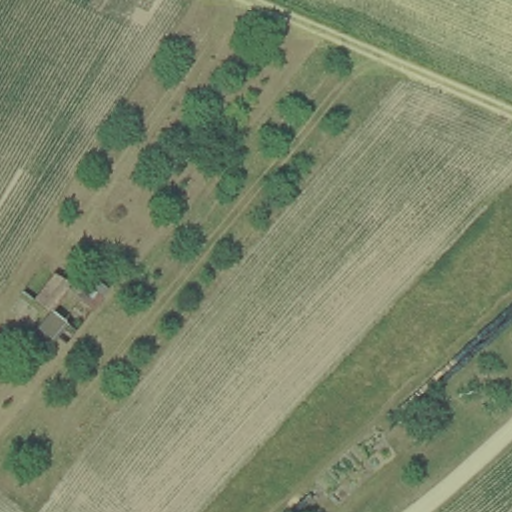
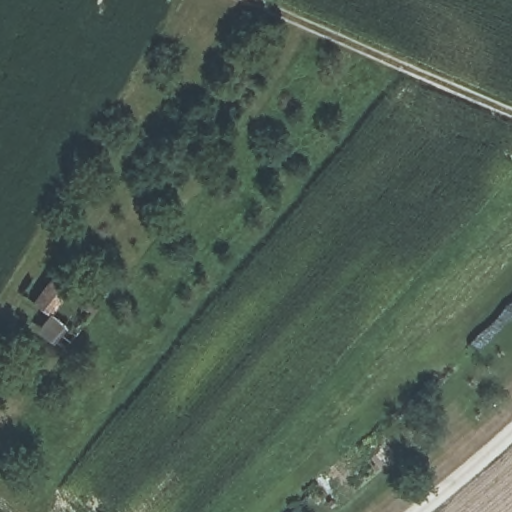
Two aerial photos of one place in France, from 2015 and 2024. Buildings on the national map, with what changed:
unchanged [(76,326),(32,292),(57,261),(105,291),(76,326)]

